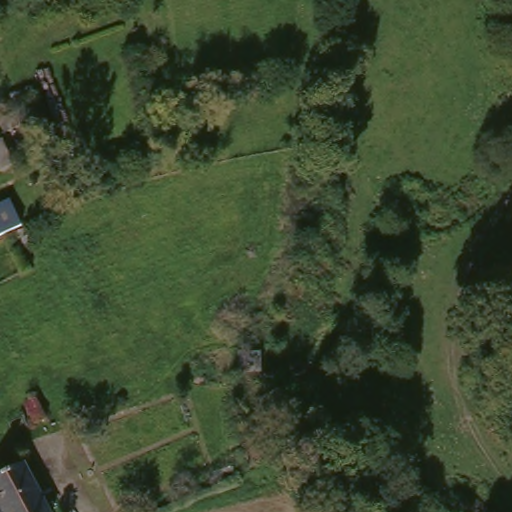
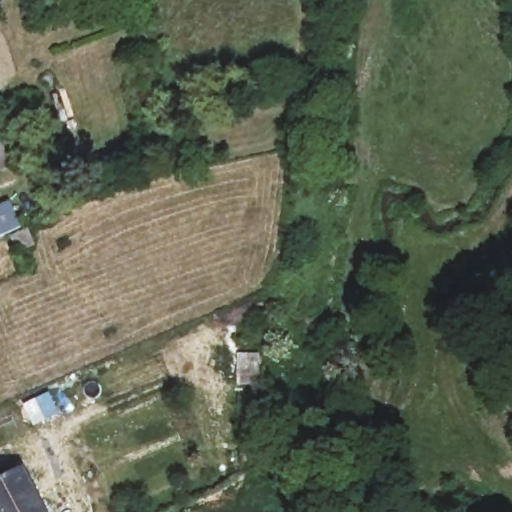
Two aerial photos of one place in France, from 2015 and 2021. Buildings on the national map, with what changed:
unchanged [(14,132),(24,158),(11,162),(1,137),(14,132)]
unchanged [(23,226),(4,235),(0,236),(0,209),(14,203),(23,226)]
unchanged [(53,419),(49,411),(41,399),(54,392),(65,411),(53,419)]
unchanged [(0,512),(0,477),(21,467),(40,512),(0,512)]

